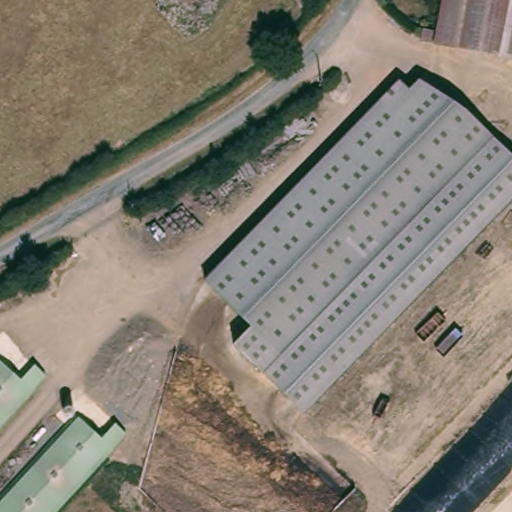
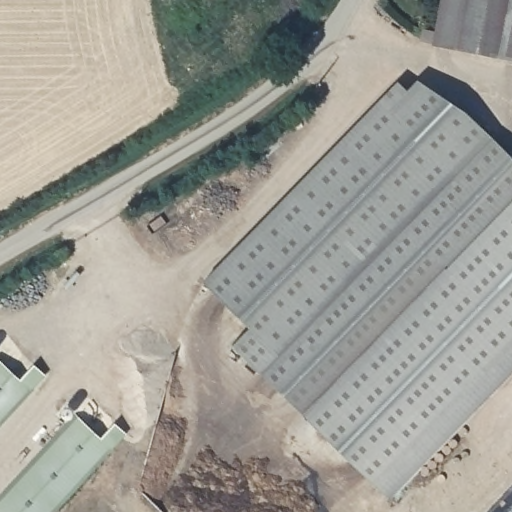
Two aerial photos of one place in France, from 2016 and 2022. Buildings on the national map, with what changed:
unchanged [(428,40),(431,25),(441,27),(445,0),(512,0),(512,61),(428,40)]
unchanged [(408,229),(415,237),(290,364),(206,281),(384,99),(395,107),(422,80),(471,111),(496,139),(408,229)]
unchanged [(290,364),(415,237),(408,229),(496,139),(512,154),(512,198),(300,411),(231,341),(250,324),(290,364)]
new [(389,496),(302,409),(512,198),(512,371),(389,496)]
unchanged [(0,399),(0,361),(20,378),(0,399)]
unchanged [(22,380),(35,366),(50,377),(0,431),(0,399),(20,378),(22,380)]
unchanged [(116,426),(130,438),(62,512),(0,512),(0,505),(79,420),(101,440),(116,426)]

